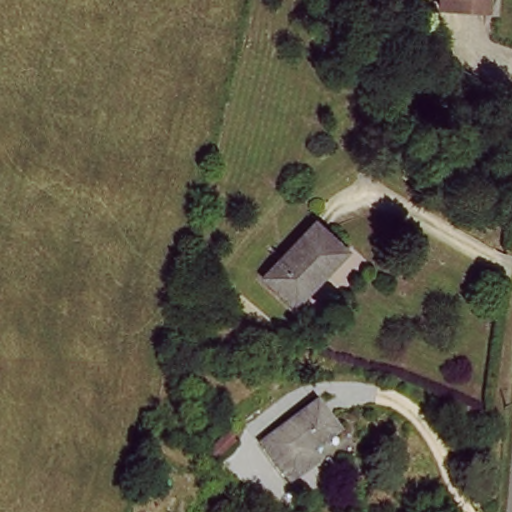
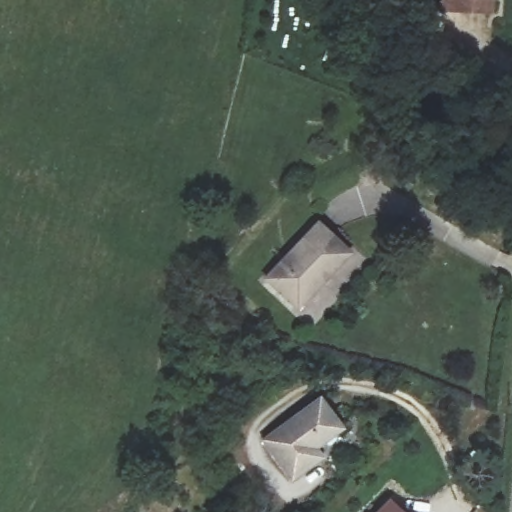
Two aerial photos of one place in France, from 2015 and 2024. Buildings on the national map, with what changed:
unchanged [(442,0),(490,0),(489,11),(442,3),(442,0)]
unchanged [(311,225),(346,258),(297,306),(262,271),(311,225)]
unchanged [(323,398),(342,425),(313,447),(320,460),(291,480),(261,442),(323,398)]
new [(402,512),(379,512),(391,500),(402,512)]

